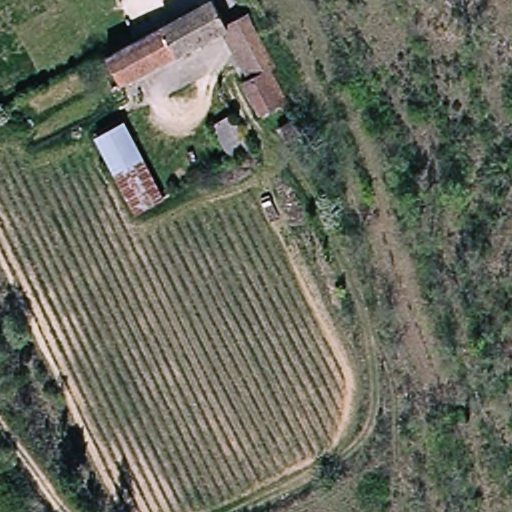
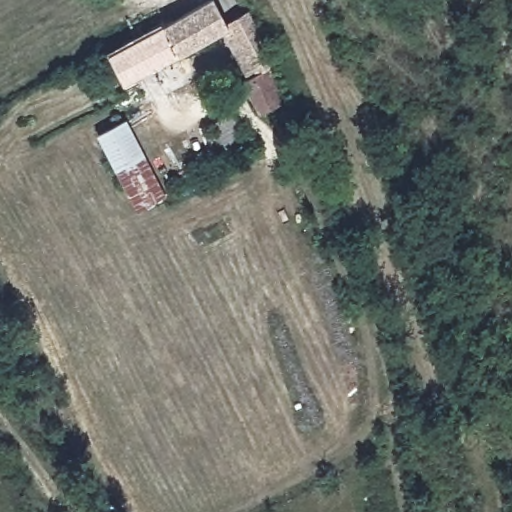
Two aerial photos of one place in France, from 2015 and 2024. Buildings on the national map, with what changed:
unchanged [(94,66),(105,59),(137,40),(210,2),(227,30),(218,34),(118,84),(112,72),(102,78),(94,66)]
unchanged [(218,34),(227,30),(247,20),(274,73),(271,75),(245,85),(218,34)]
unchanged [(271,75),(291,112),(282,116),(278,110),(257,121),(239,88),(245,85),(271,75)]
unchanged [(253,147),(234,157),(214,124),(232,113),(253,147)]
unchanged [(167,198),(134,217),(93,137),(127,122),(167,198)]

